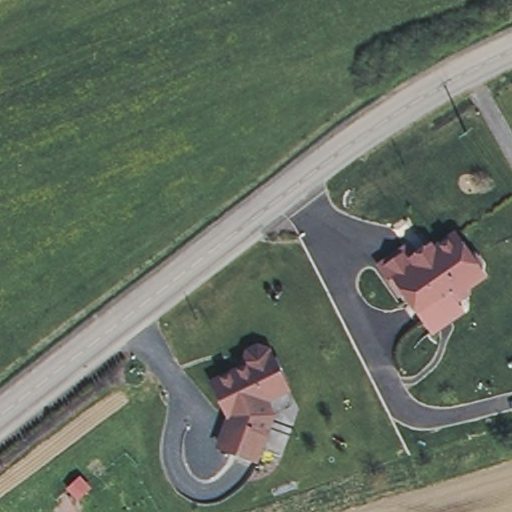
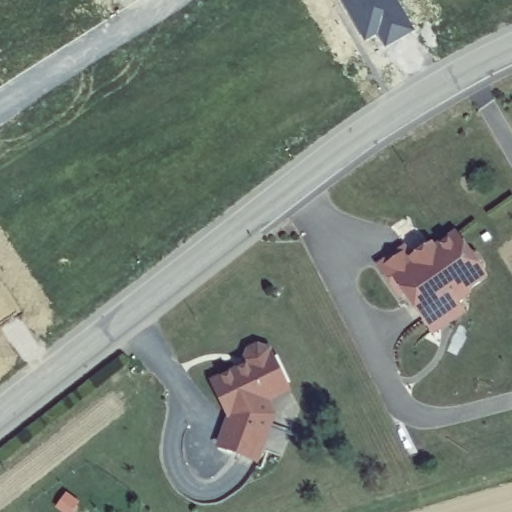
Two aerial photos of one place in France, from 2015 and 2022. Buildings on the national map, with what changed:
new [(386,47),(375,38),(365,43),(339,0),(398,0),(414,28),(386,47)]
unchanged [(403,246),(410,256),(427,244),(430,248),(452,232),(465,250),(472,252),(479,263),(476,268),(480,274),(465,285),(462,293),(452,300),(460,310),(431,330),(402,289),(397,292),(377,264),(403,246)]
unchanged [(248,363),(247,360),(246,359),(250,349),(261,344),(270,347),(272,352),(288,387),(267,397),(230,409),(215,379),(248,363)]
unchanged [(222,442),(232,414),(230,409),(267,397),(274,412),(268,427),(257,455),(222,442)]

